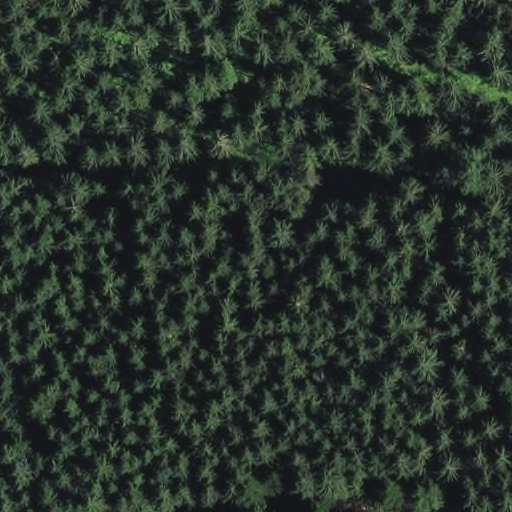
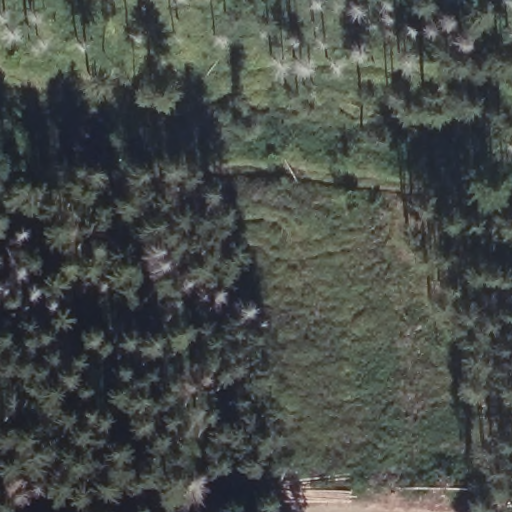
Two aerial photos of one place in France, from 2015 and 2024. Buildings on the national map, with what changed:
unchanged [(0,3),(0,0),(38,0),(38,5),(0,3)]

